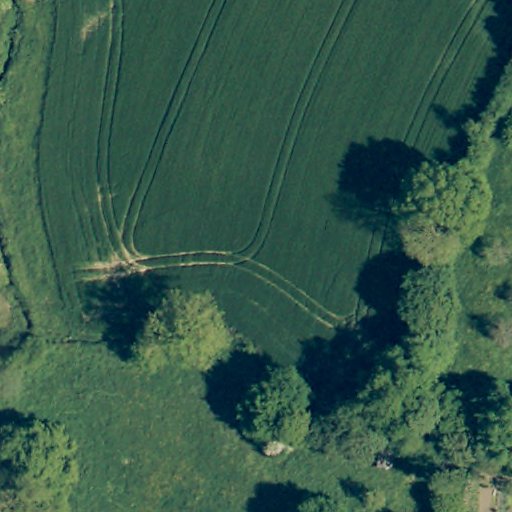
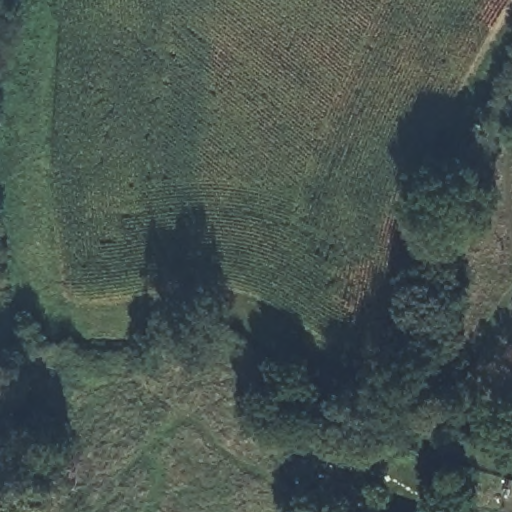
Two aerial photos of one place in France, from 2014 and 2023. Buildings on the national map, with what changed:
unchanged [(391,446),(390,466),(384,466),(371,465),(372,458),(372,445),(391,446)]

